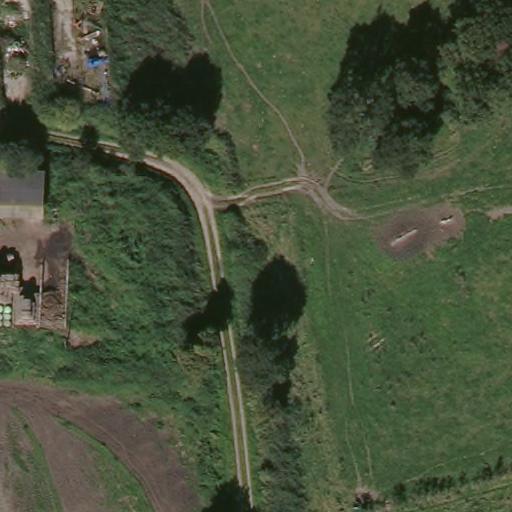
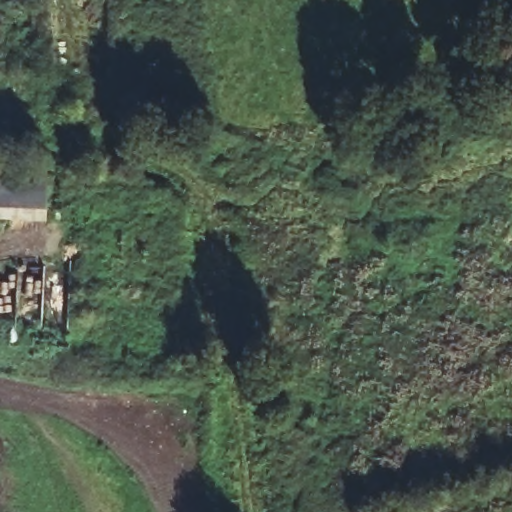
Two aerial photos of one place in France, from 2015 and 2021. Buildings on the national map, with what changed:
unchanged [(50,210),(0,208),(0,172),(50,175),(50,210)]

